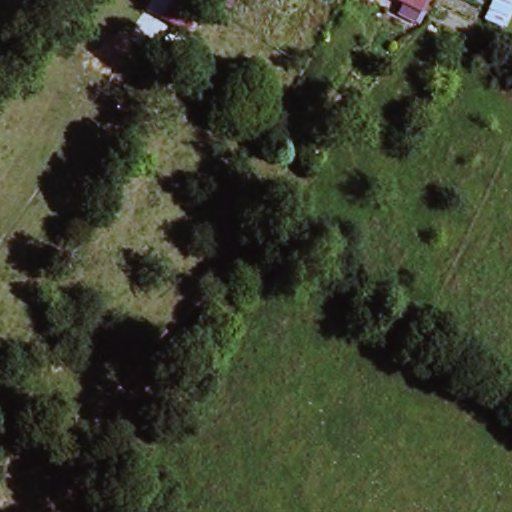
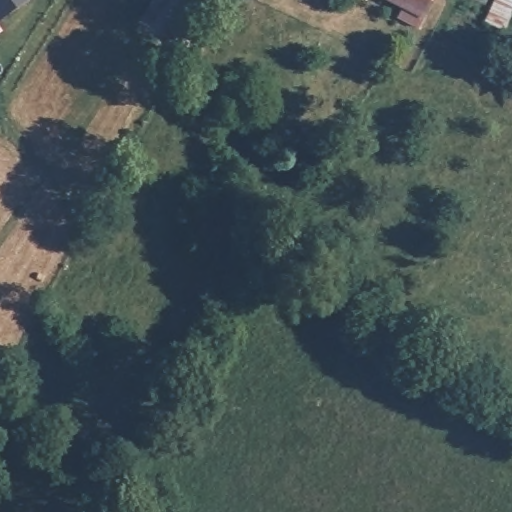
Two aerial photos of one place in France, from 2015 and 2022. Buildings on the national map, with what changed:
new [(30,0),(0,23),(0,0),(30,0)]
unchanged [(184,0),(207,0),(201,10),(184,0)]
unchanged [(235,0),(229,11),(213,4),(215,0),(235,0)]
unchanged [(420,9),(414,21),(398,13),(404,2),(400,0),(429,0),(424,11),(420,9)]
unchanged [(510,0),(512,1),(512,5),(501,30),(486,24),(497,0),(510,0)]

